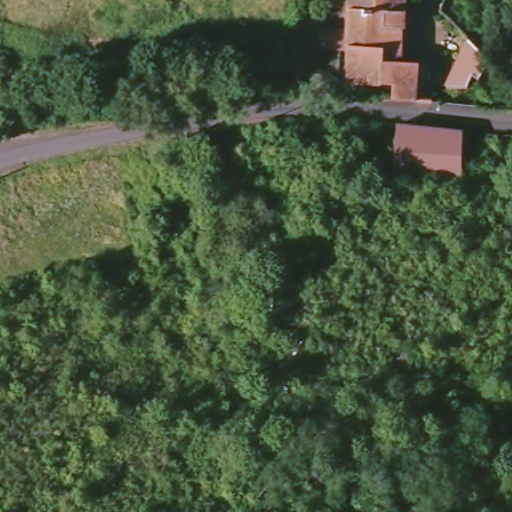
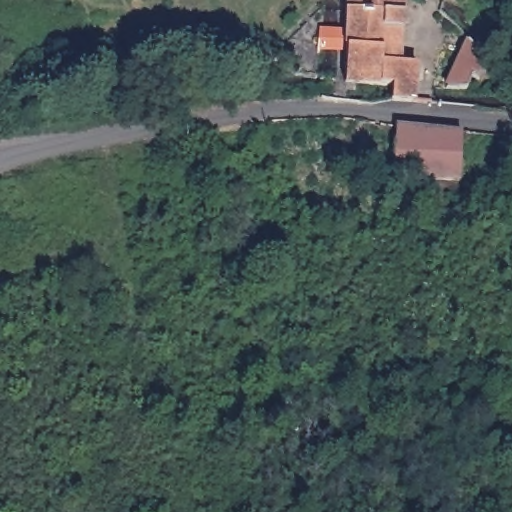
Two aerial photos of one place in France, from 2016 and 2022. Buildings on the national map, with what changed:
unchanged [(345,36),(347,0),(404,0),(404,17),(402,68),(417,69),(416,108),(392,107),(392,91),(356,89),(346,88),(347,56),(319,53),(320,35),(322,35),(345,36)]
unchanged [(447,82),(468,34),(488,55),(479,77),(474,72),(470,84),(447,82)]
unchanged [(462,132),(461,179),(395,180),(396,125),(462,132)]

